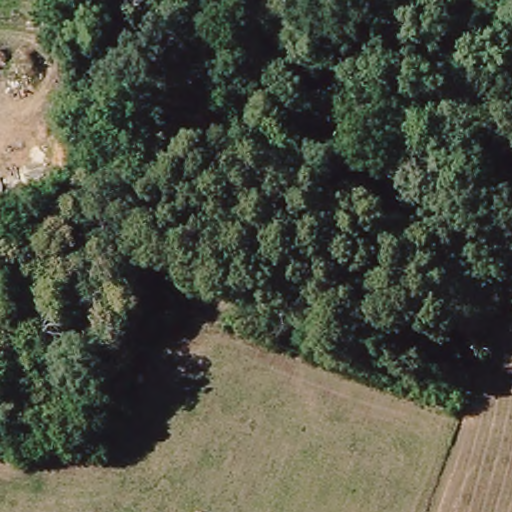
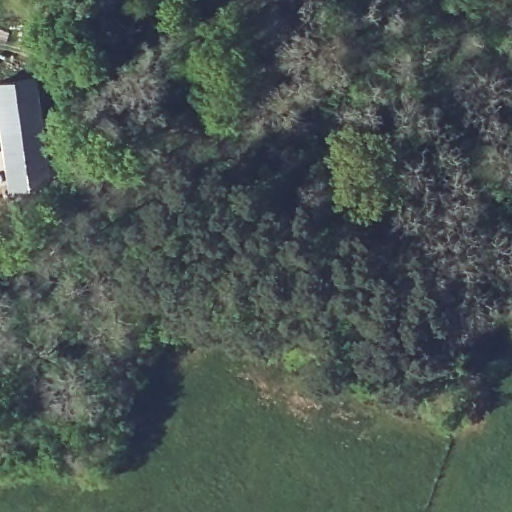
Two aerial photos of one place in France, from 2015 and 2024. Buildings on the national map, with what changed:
new [(37,76),(53,190),(12,197),(0,114),(0,82),(37,76)]
demolished [(22,156),(30,182),(7,189),(0,166),(0,163),(22,156)]

